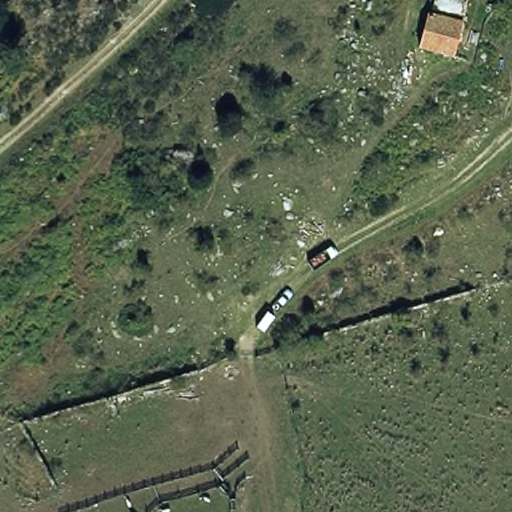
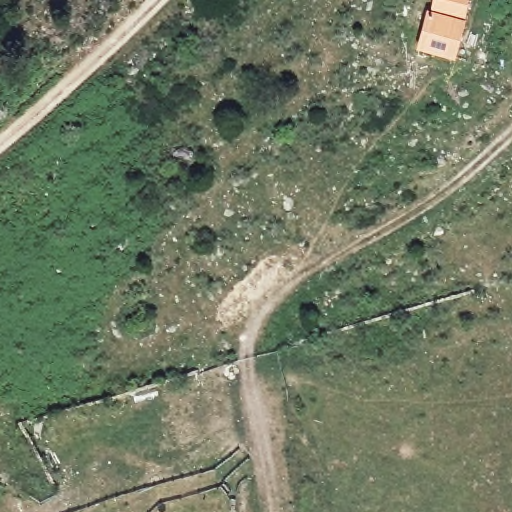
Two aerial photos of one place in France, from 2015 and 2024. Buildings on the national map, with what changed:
unchanged [(418,47),(432,0),(470,0),(455,55),(418,47)]

